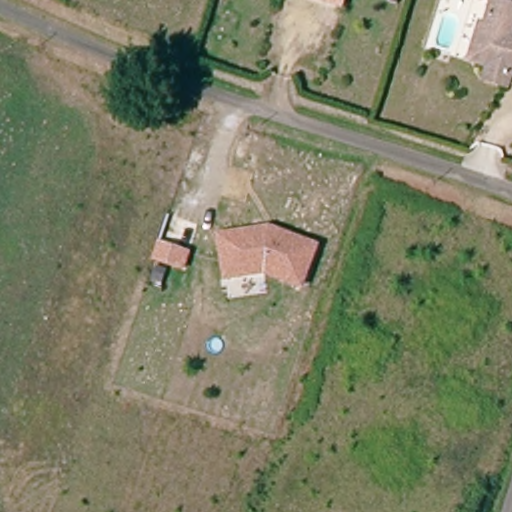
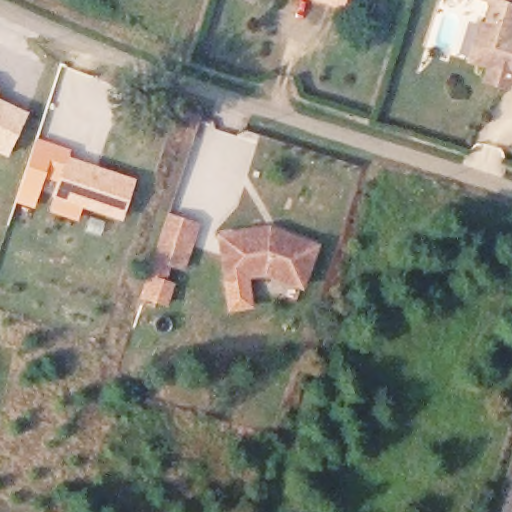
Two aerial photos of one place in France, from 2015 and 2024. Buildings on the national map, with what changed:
new [(341,10),(310,0),(345,0),(341,10)]
unchanged [(487,81),(492,66),(477,62),(471,60),(482,25),(487,27),(495,2),(488,0),(512,0),(512,6),(512,76),(508,87),(487,81)]
new [(28,111),(8,158),(0,154),(0,99),(28,111)]
new [(70,150),(69,156),(135,178),(121,220),(81,207),(77,220),(49,211),(53,196),(50,195),(55,181),(44,177),(39,193),(19,185),(36,137),(70,150)]
new [(200,225),(184,271),(170,266),(165,280),(174,283),(166,306),(139,296),(166,212),(200,225)]
unchanged [(303,287),(265,275),(224,283),(215,235),(268,227),(319,245),(303,287)]
unchanged [(253,308),(228,312),(224,283),(249,278),(253,308)]

